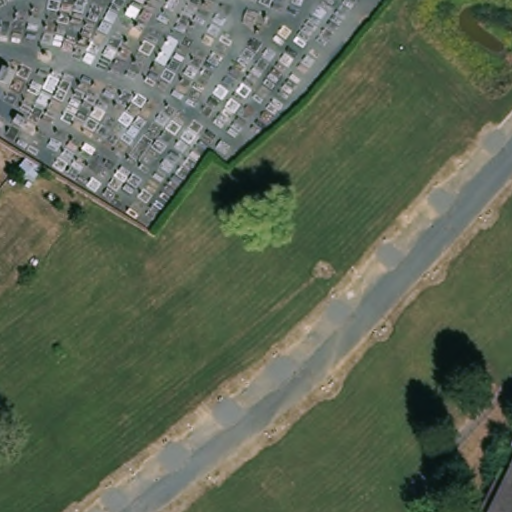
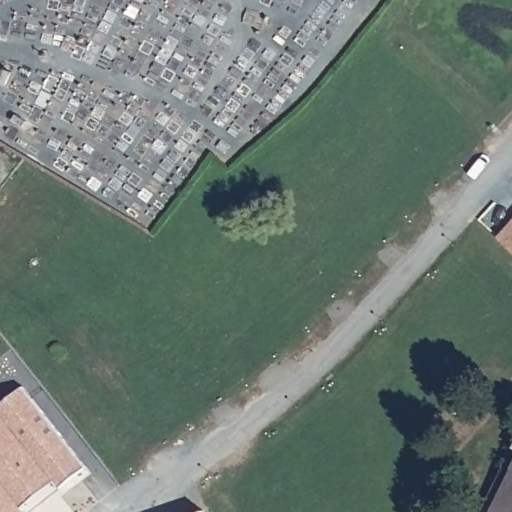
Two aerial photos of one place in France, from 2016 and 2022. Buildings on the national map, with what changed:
new [(497,238),(512,221),(512,252),(497,238)]
demolished [(180,249),(171,258),(161,248),(169,241),(172,238),(180,249)]
new [(58,489),(52,481),(20,507),(25,512),(0,512),(0,406),(23,387),(87,467),(58,489)]
unchanged [(502,512),(485,503),(512,451),(512,512),(502,512)]
new [(197,512),(203,509),(204,512),(197,512)]

